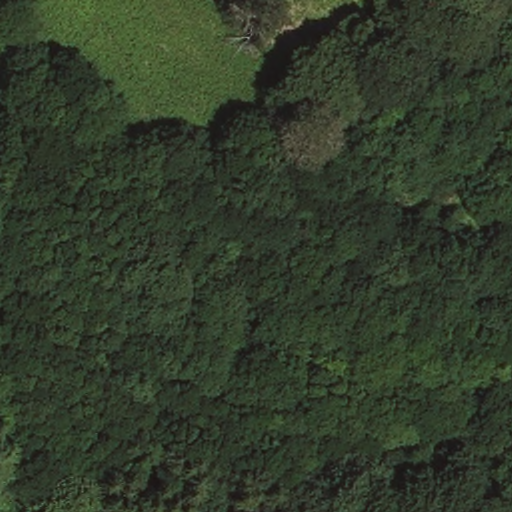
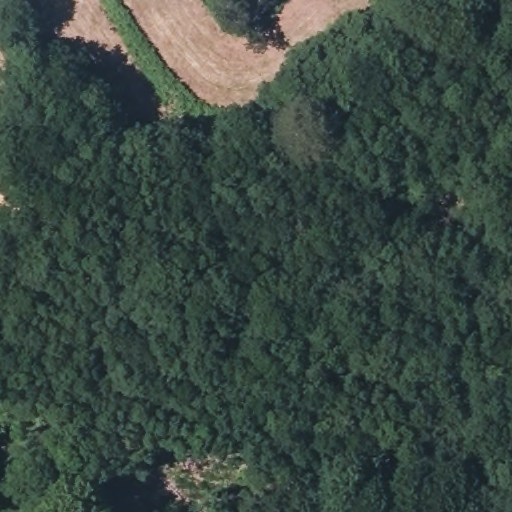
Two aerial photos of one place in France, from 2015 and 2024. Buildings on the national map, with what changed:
unchanged [(0,203),(0,200),(8,188),(27,199),(17,213),(0,203)]

